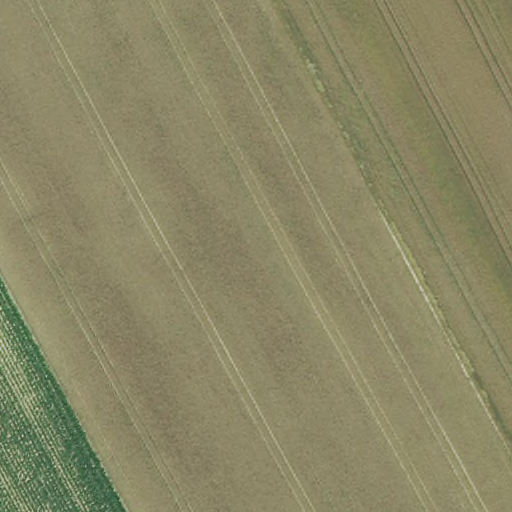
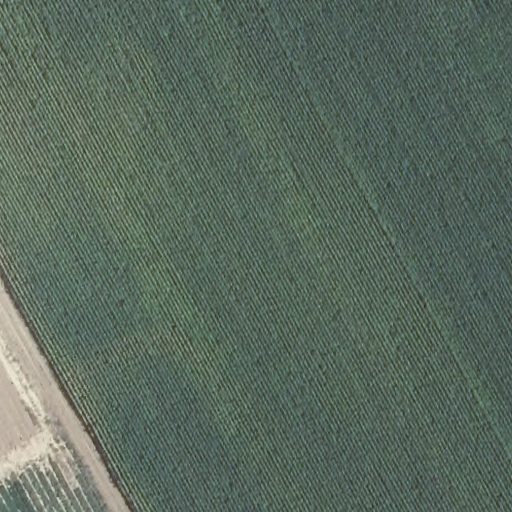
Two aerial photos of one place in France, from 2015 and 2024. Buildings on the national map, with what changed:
[]

